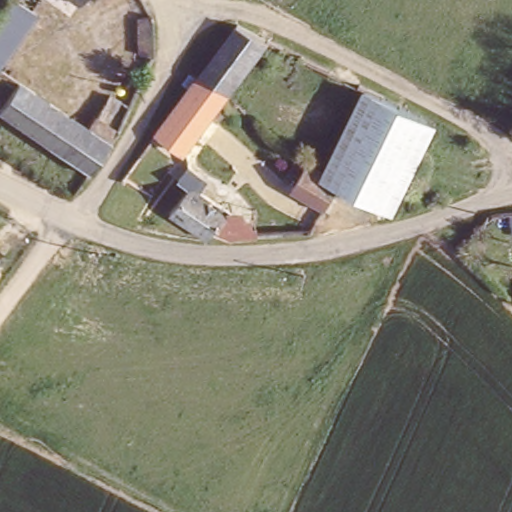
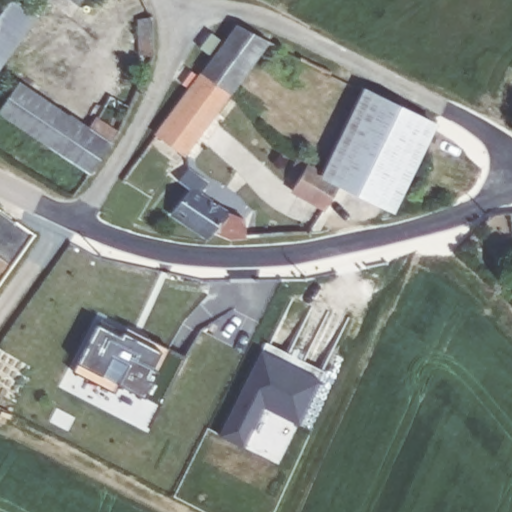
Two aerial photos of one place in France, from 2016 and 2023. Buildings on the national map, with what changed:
unchanged [(39,12),(0,68),(0,1),(1,0),(21,0),(39,12)]
unchanged [(82,2),(80,0),(84,0),(82,2)]
unchanged [(153,14),(153,49),(142,49),(141,15),(153,14)]
unchanged [(241,22),(270,38),(232,90),(205,68),(241,22)]
unchanged [(205,68),(232,90),(187,150),(160,130),(205,68)]
unchanged [(11,97),(18,84),(20,81),(88,129),(115,93),(131,104),(120,127),(90,171),(3,110),(11,97)]
unchanged [(366,86),(436,122),(395,210),(342,185),(323,174),(366,86)]
unchanged [(178,161),(198,179),(191,189),(170,171),(178,161)]
unchanged [(305,163),(323,174),(342,185),(327,209),(290,188),(305,163)]
unchanged [(229,214),(216,230),(210,237),(207,235),(172,212),(191,189),(229,214)]
unchanged [(229,214),(283,211),(284,234),(234,237),(216,230),(229,214)]
new [(184,358),(160,406),(145,399),(120,386),(115,394),(72,371),(76,363),(97,326),(120,338),(124,333),(126,327),(170,350),(184,358)]
new [(265,342),(322,371),(321,381),(299,426),(264,406),(244,448),(219,436),(260,350),(265,342)]

